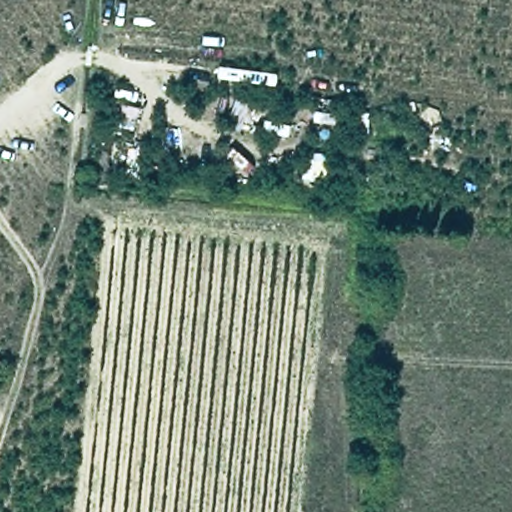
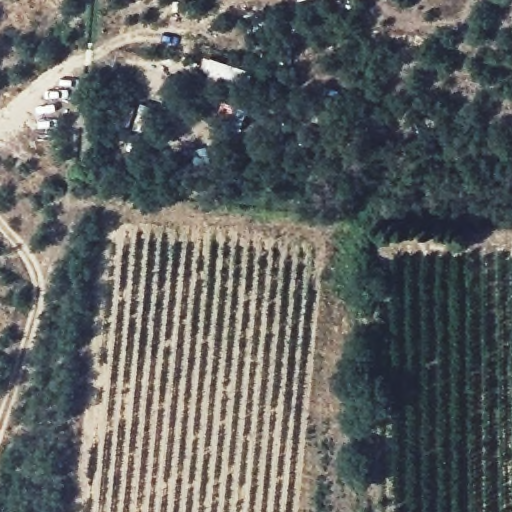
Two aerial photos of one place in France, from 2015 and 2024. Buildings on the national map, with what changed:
unchanged [(5,369),(0,373),(0,362),(5,369)]

